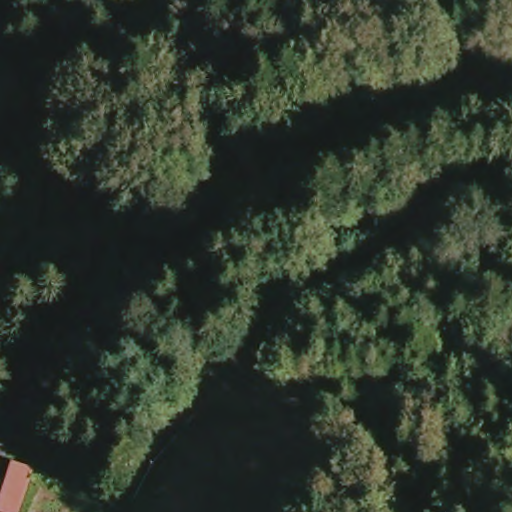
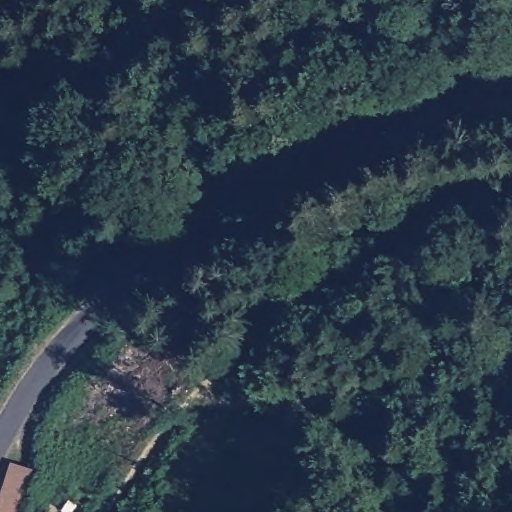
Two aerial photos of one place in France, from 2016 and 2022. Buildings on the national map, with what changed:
unchanged [(24,512),(0,512),(0,505),(13,466),(36,473),(24,512)]

